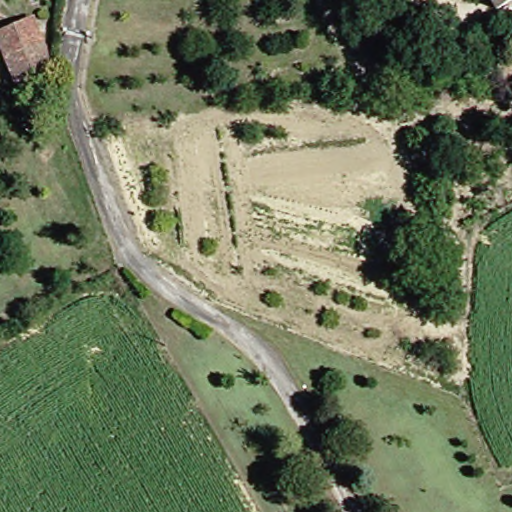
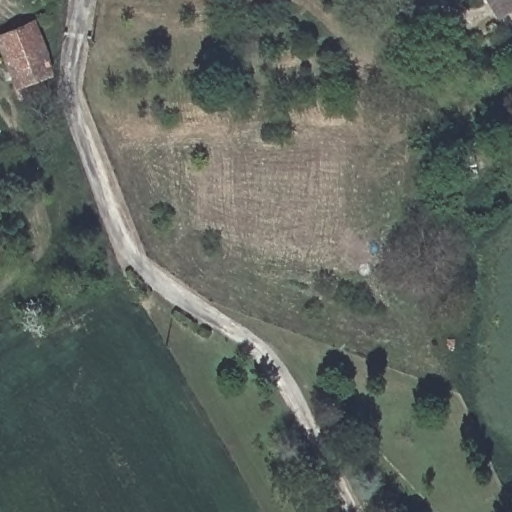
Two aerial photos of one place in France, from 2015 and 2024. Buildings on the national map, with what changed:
unchanged [(498,9),(494,0),(512,0),(512,9),(500,15),(498,9)]
unchanged [(21,101),(19,92),(4,38),(41,27),(54,66),(39,77),(41,84),(44,94),(21,101)]

